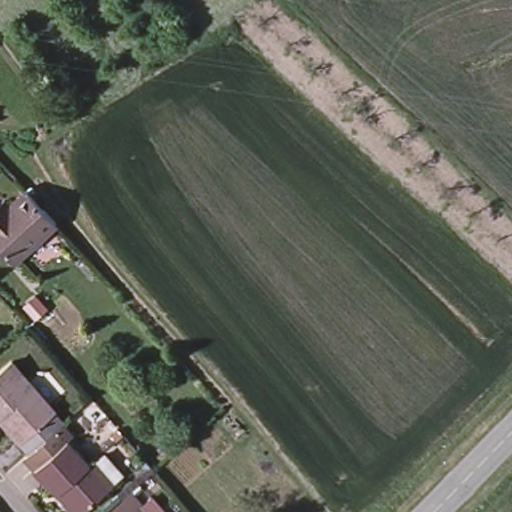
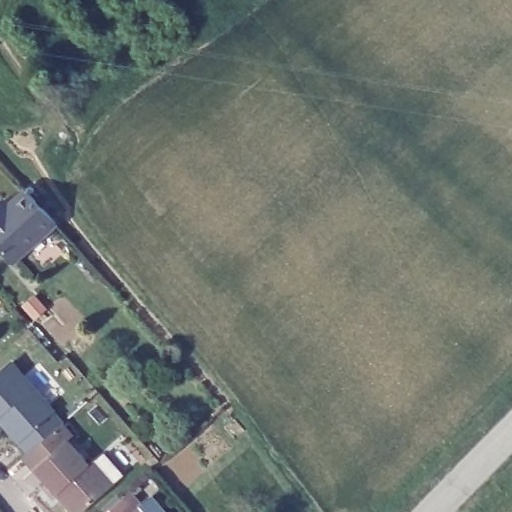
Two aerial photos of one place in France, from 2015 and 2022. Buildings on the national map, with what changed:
unchanged [(0,203),(2,202),(7,207),(22,193),(52,227),(11,263),(0,251),(0,203)]
unchanged [(37,293),(49,305),(37,315),(26,303),(37,293)]
unchanged [(55,407),(26,432),(20,438),(0,415),(0,371),(13,361),(55,407)]
unchanged [(58,496),(35,471),(25,459),(27,458),(63,427),(73,438),(67,444),(89,467),(94,462),(101,456),(109,456),(124,473),(122,481),(115,487),(86,512),(80,512),(62,492),(58,496)]
unchanged [(151,496),(166,512),(133,512),(139,507),(151,496)]

